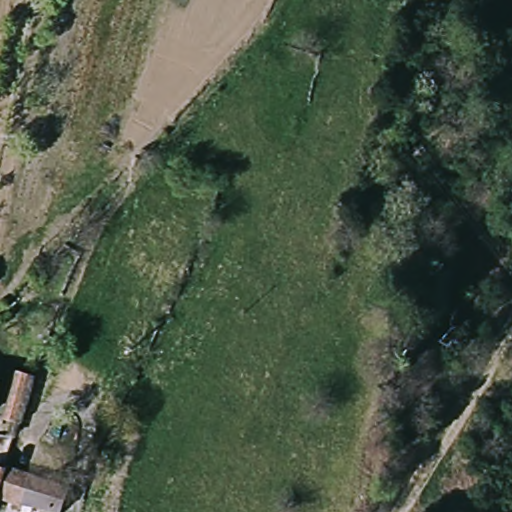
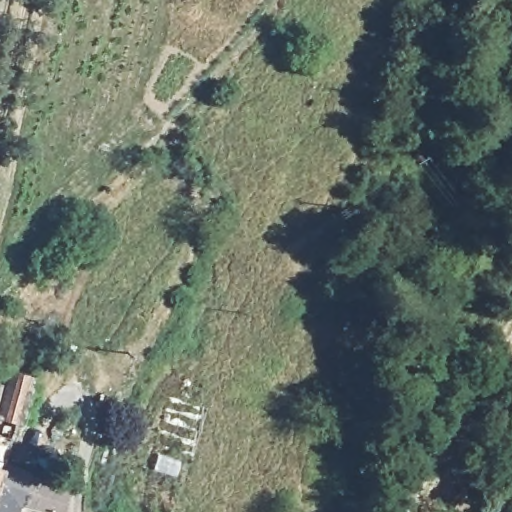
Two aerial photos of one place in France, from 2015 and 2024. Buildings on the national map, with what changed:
unchanged [(13,376),(35,382),(22,417),(2,410),(13,376)]
unchanged [(0,389),(0,380),(2,381),(0,389)]
unchanged [(72,496),(67,512),(39,512),(0,496),(0,465),(2,466),(72,496)]

